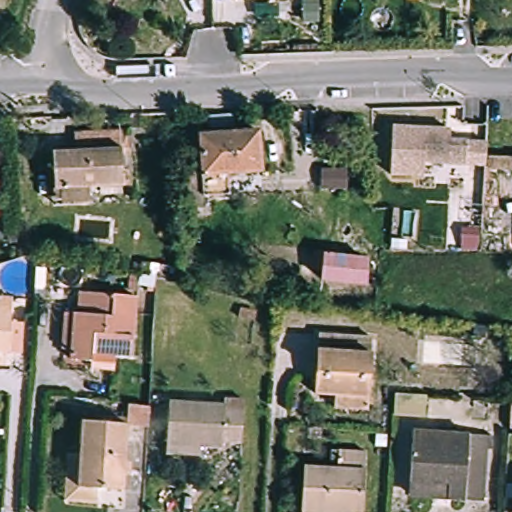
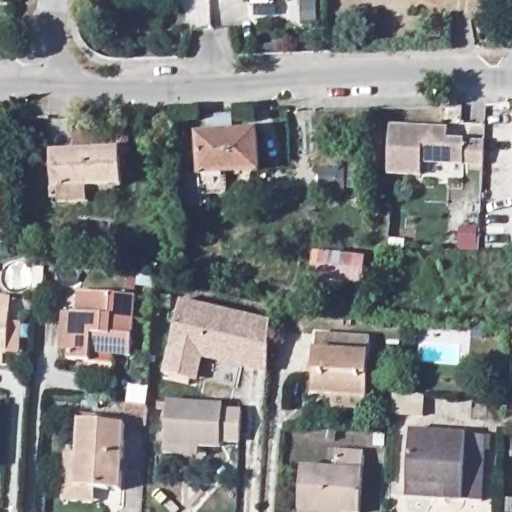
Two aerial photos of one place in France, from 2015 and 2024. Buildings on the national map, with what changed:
unchanged [(289,4),(232,5),(231,0),(289,0),(289,4)]
unchanged [(484,167),(423,164),(422,176),(389,175),(390,127),(450,128),(449,140),(486,141),(484,167)]
unchanged [(51,195),(50,158),(71,158),(70,141),(126,140),(127,163),(118,163),(119,193),(88,194),(88,208),(72,208),(51,209),(51,195)]
unchanged [(223,179),(225,199),(200,201),(195,145),(230,142),(253,141),(256,176),(223,179)]
unchanged [(315,288),(320,243),(365,262),(361,273),(358,298),(315,288)]
unchanged [(90,362),(68,361),(69,351),(60,350),(62,315),(70,315),(80,316),(80,296),(136,300),(134,345),(111,344),(110,363),(90,362)]
unchanged [(7,300),(6,312),(5,325),(19,326),(18,344),(4,342),(3,356),(0,356),(0,299),(7,300)]
new [(175,301),(266,317),(265,335),(239,330),(237,346),(195,339),(188,380),(187,385),(167,381),(168,376),(162,375),(175,301)]
unchanged [(511,345),(512,326),(512,345),(511,345)]
new [(195,339),(237,346),(239,330),(265,335),(263,369),(200,357),(195,381),(188,380),(195,339)]
unchanged [(328,411),(330,399),(313,397),(317,341),(366,345),(362,401),(362,414),(328,411)]
unchanged [(512,404),(512,428),(506,427),(508,404),(512,404)]
unchanged [(171,411),(243,415),(241,445),(226,444),(225,449),(209,448),(209,459),(169,457),(171,411)]
unchanged [(76,425),(121,427),(119,493),(73,492),(76,425)]
unchanged [(409,480),(412,437),(413,431),(484,437),(483,443),(480,502),(446,500),(408,498),(409,480)]
unchanged [(324,471),(324,466),(325,454),(330,454),(359,457),(356,512),(297,512),(300,469),(324,471)]

